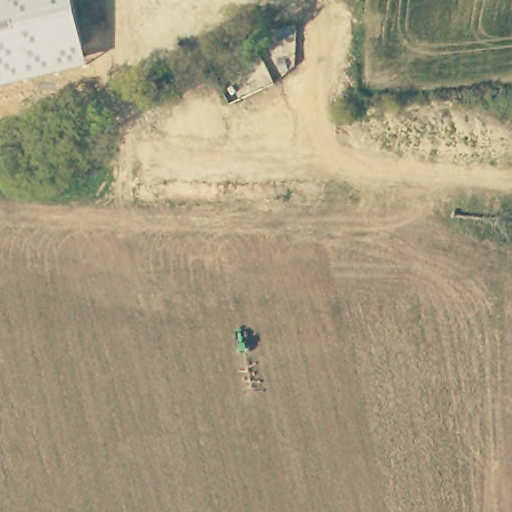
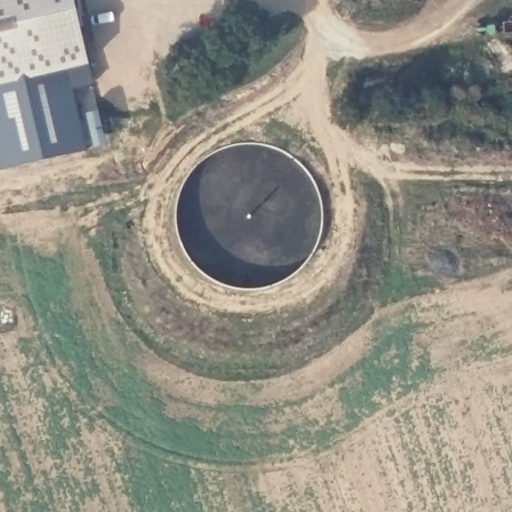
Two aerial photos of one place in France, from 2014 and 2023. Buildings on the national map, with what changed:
unchanged [(0,0),(72,0),(86,64),(0,84),(0,0)]
new [(91,86),(72,90),(84,153),(0,173),(0,84),(86,64),(91,86)]

